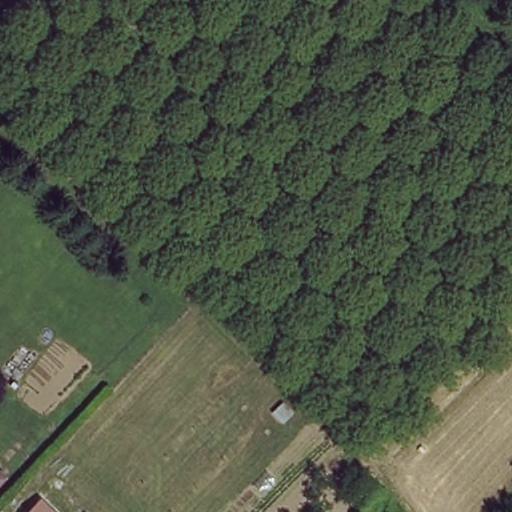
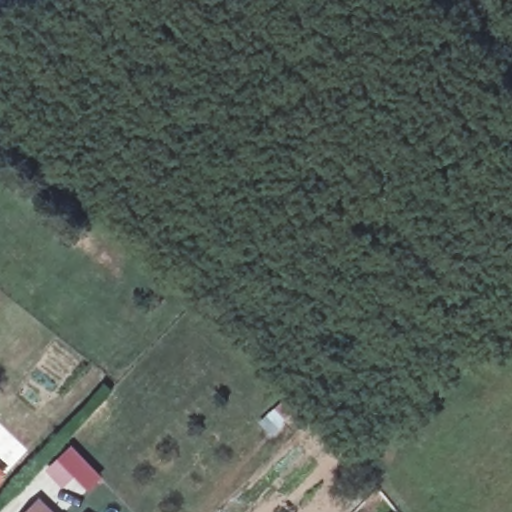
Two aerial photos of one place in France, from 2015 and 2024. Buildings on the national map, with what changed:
new [(62,490),(45,472),(72,446),(102,478),(88,492),(75,478),(62,490)]
unchanged [(0,479),(0,471),(4,475),(0,479)]
unchanged [(25,512),(39,499),(52,512),(25,512)]

